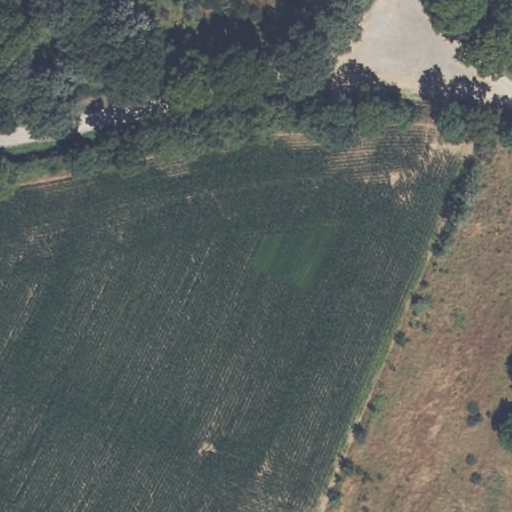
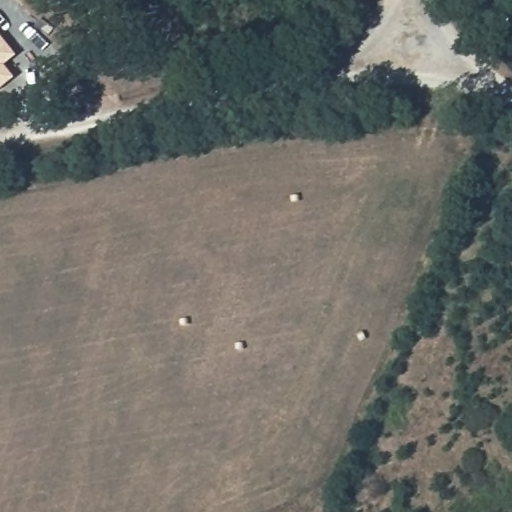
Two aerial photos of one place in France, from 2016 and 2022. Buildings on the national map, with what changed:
new [(14,52),(3,62),(14,78),(0,87),(0,36),(14,52)]

